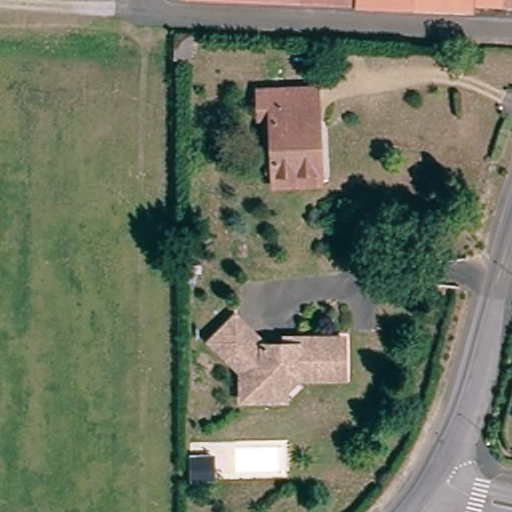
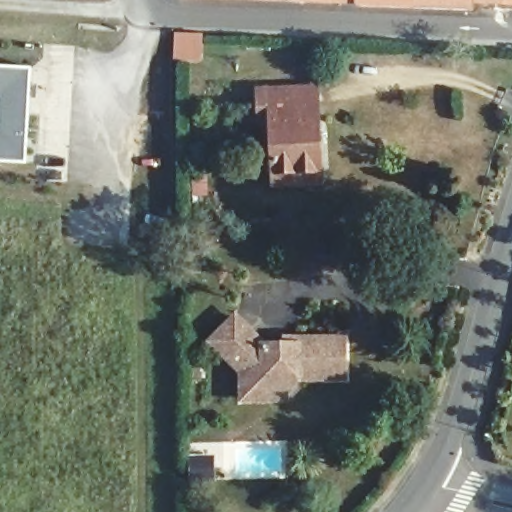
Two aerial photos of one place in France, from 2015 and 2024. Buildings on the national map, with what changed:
unchanged [(354,2),(187,0),(470,0),(470,5),(354,2)]
unchanged [(502,2),(502,0),(512,0),(512,7),(509,7),(509,2),(502,2)]
unchanged [(174,64),(172,61),(172,45),(187,45),(186,64),(174,64)]
new [(27,164),(0,162),(0,132),(2,96),(0,95),(0,66),(31,67),(27,164)]
unchanged [(281,175),(278,124),(263,124),(263,113),(263,97),(321,95),(324,174),(325,188),(282,192),(281,175)]
unchanged [(266,408),(239,409),(237,377),(208,351),(234,324),(262,351),(283,350),(284,341),(296,340),(342,337),(345,380),(300,382),(287,392),(287,407),(266,408)]

